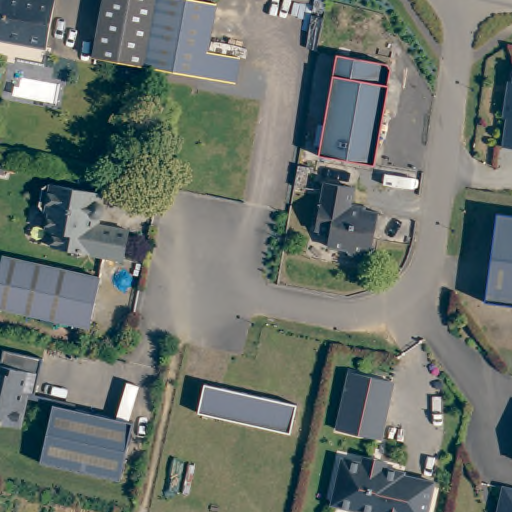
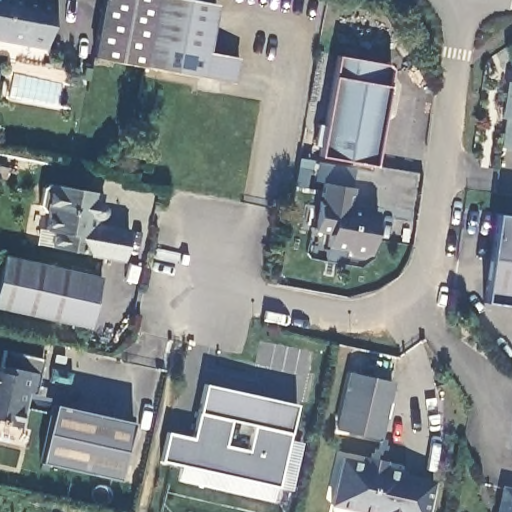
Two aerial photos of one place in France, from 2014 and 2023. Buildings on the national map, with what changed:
unchanged [(34,0),(36,0),(37,0),(56,0),(44,52),(0,43),(0,0),(34,0)]
unchanged [(202,0),(212,2),(201,50),(233,56),(228,82),(160,68),(137,64),(88,53),(99,0),(202,0)]
unchanged [(393,65),(396,71),(393,87),(394,87),(379,168),(322,157),(342,56),(393,65)]
unchanged [(510,116),(506,116),(510,90),(512,90),(512,146),(506,145),(510,116)]
unchanged [(332,186),(352,190),(348,210),(376,215),(368,257),(367,256),(361,260),(348,257),(343,252),(325,249),(328,235),(313,232),(322,184),(332,186)]
unchanged [(103,210),(104,210),(105,211),(106,212),(107,215),(107,216),(107,217),(107,219),(106,219),(106,220),(105,221),(102,222),(101,223),(100,230),(133,236),(127,265),(55,254),(58,237),(49,236),(52,219),(47,218),(42,211),(45,195),(52,190),(105,199),(103,210)]
unchanged [(512,307),(481,303),(492,214),(512,216),(512,307)]
unchanged [(100,279),(89,328),(0,310),(0,266),(1,258),(100,279)]
unchanged [(47,358),(39,395),(32,394),(25,428),(1,423),(2,420),(0,420),(0,373),(2,373),(7,350),(47,358)]
unchanged [(392,382),(379,440),(338,431),(350,373),(392,382)]
unchanged [(297,408),(290,437),(198,416),(204,386),(297,408)]
unchanged [(133,421),(121,480),(40,464),(53,405),(133,421)]
new [(277,486),(162,460),(167,432),(193,438),(198,416),(229,423),(223,446),(249,453),(254,429),(290,437),(277,486)]
unchanged [(359,457),(380,462),(379,469),(399,473),(398,476),(429,483),(423,512),(354,512),(327,506),(337,460),(357,465),(359,457)]
unchanged [(498,495),(503,497),(512,499),(512,512),(495,512),(498,495)]

